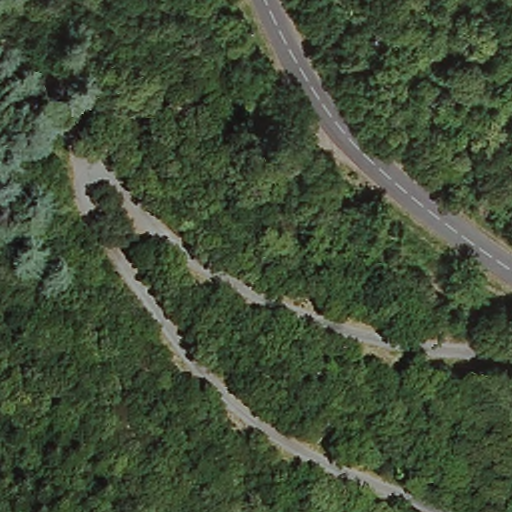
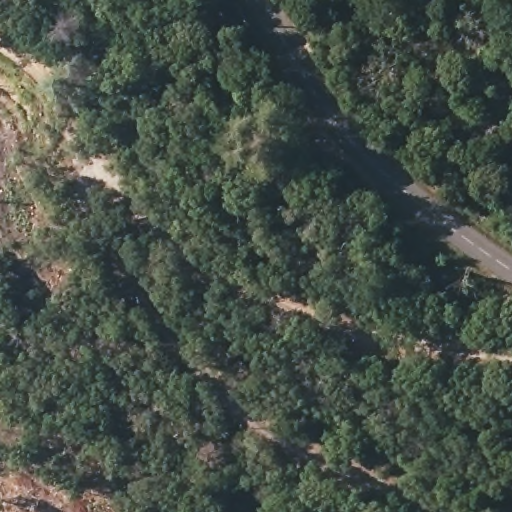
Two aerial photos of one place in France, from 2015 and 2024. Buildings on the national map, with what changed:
unchanged [(200,109),(183,131),(164,113),(180,93),(200,109)]

